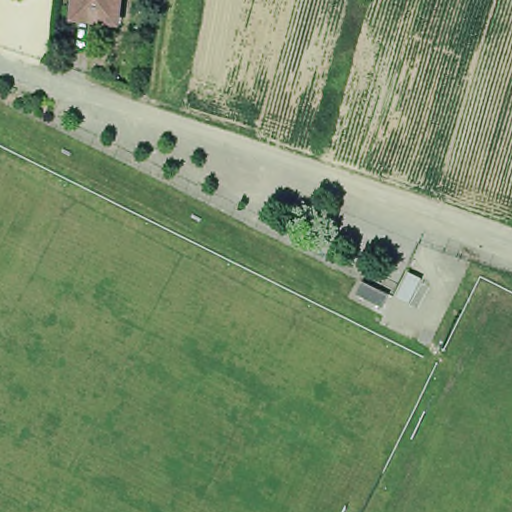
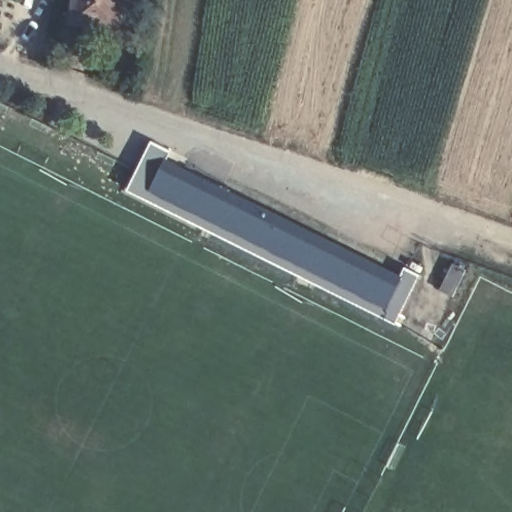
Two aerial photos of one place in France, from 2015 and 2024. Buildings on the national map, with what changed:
unchanged [(76,0),(116,0),(114,18),(74,13),(76,0)]
new [(420,272),(392,325),(125,192),(150,142),(420,272)]

